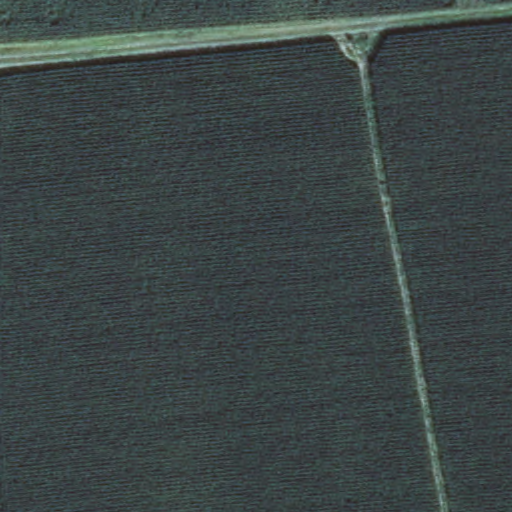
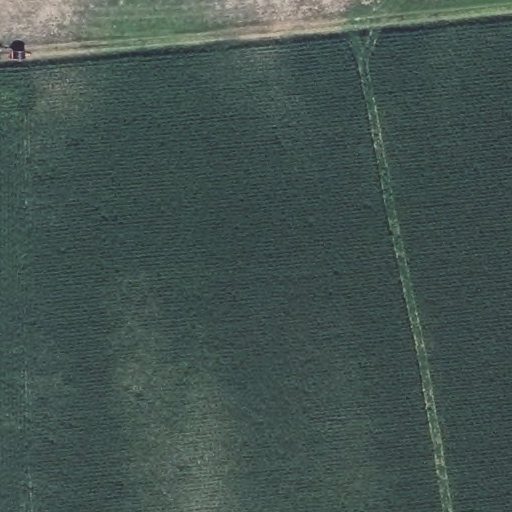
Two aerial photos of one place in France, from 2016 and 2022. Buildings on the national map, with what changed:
[]

